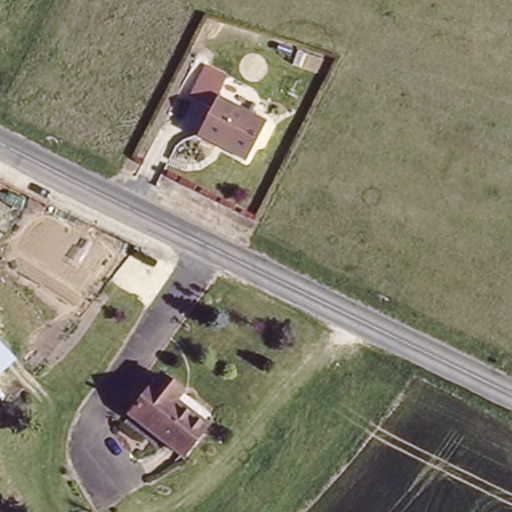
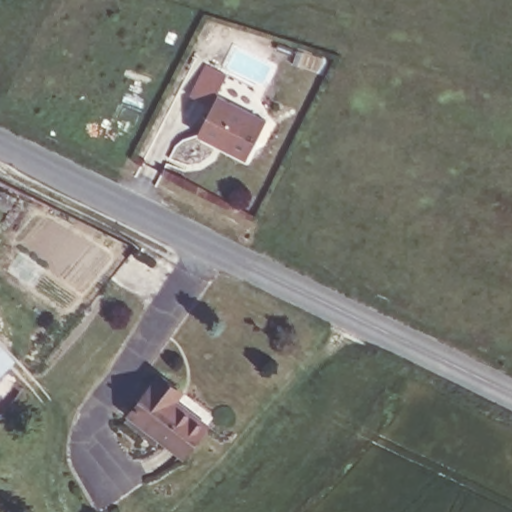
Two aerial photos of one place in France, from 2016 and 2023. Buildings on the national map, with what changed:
unchanged [(272,120),(252,159),(202,134),(224,94),(272,120)]
unchanged [(0,374),(0,343),(16,359),(0,374)]
unchanged [(189,390),(180,401),(209,425),(186,454),(134,410),(166,371),(189,390)]

